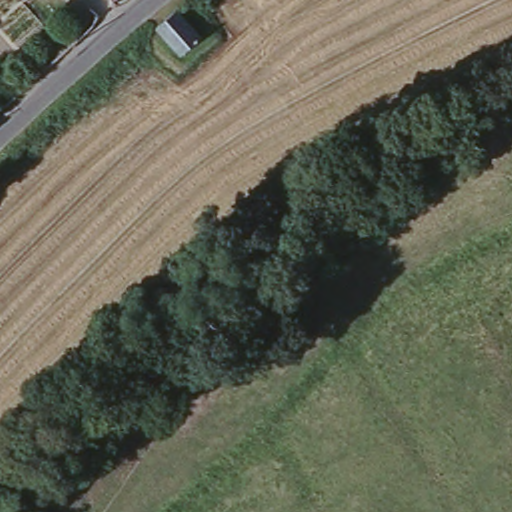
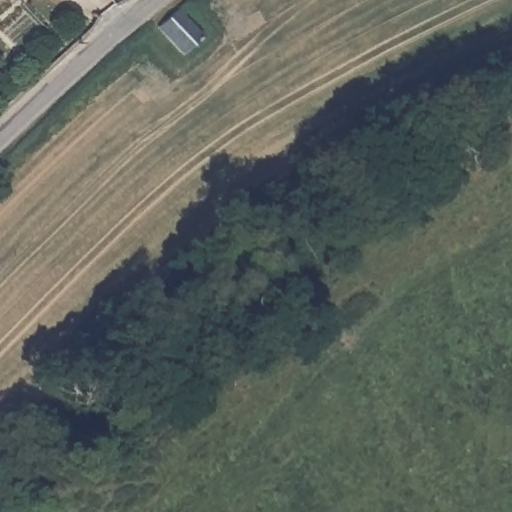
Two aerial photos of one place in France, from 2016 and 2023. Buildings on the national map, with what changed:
unchanged [(187,7),(206,30),(179,52),(159,30),(187,7)]

